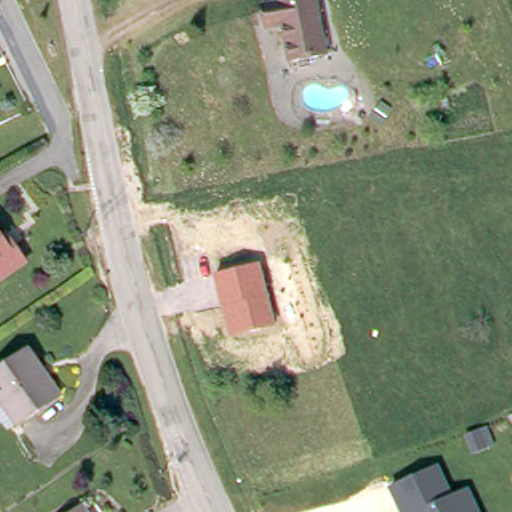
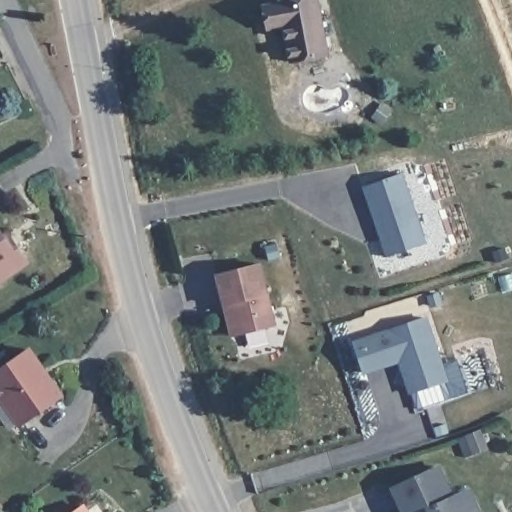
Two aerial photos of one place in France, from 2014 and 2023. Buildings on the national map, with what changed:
unchanged [(294,63),(285,27),(266,32),(260,7),(289,0),(318,0),(318,3),(331,53),(294,63)]
new [(427,244),(386,257),(362,187),(401,173),(427,244)]
unchanged [(20,244),(31,261),(0,283),(0,225),(14,245),(20,244)]
unchanged [(261,264),(276,325),(229,336),(215,276),(261,264)]
new [(448,380),(407,394),(398,363),(362,375),(351,342),(427,317),(448,380)]
unchanged [(62,394),(18,425),(15,421),(9,425),(0,412),(0,402),(3,400),(0,394),(0,368),(30,347),(62,394)]
unchanged [(442,464),(457,494),(470,487),(482,512),(401,512),(390,487),(442,464)]
unchanged [(91,512),(73,512),(85,504),(91,512)]

